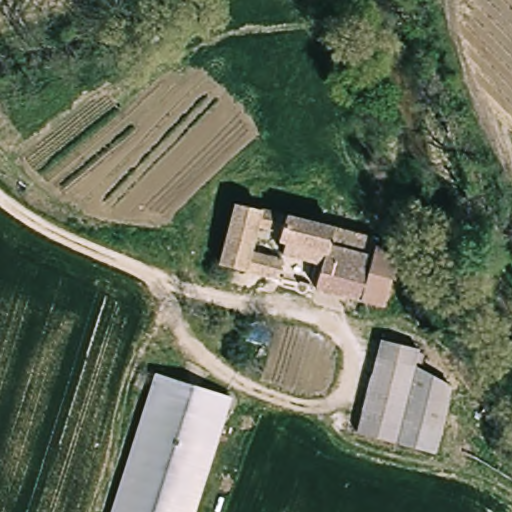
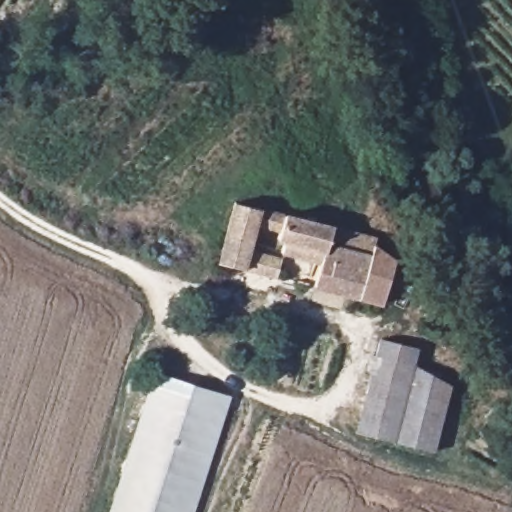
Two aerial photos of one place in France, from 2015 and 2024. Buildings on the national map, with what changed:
unchanged [(305,274),(318,278),(321,261),(285,252),(289,241),(281,238),(282,231),(260,226),(253,251),(281,259),(276,275),(223,263),(238,202),(376,238),(374,247),(359,300),(316,288),(303,284),(305,274)]
unchanged [(398,260),(385,307),(359,300),(374,247),(398,260)]
unchanged [(356,431),(380,336),(425,347),(423,365),(458,374),(439,454),(356,431)]
unchanged [(111,512),(158,368),(236,396),(199,512),(111,512)]

